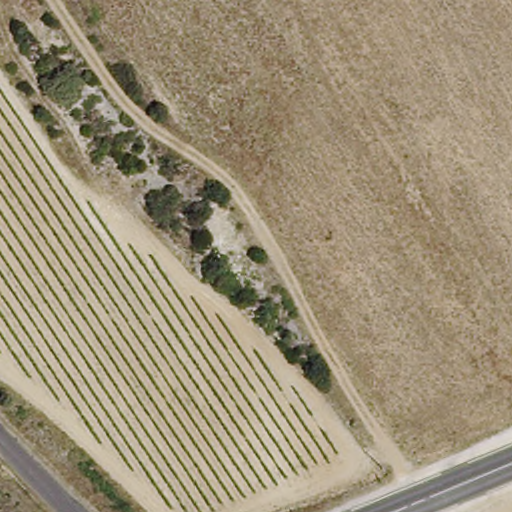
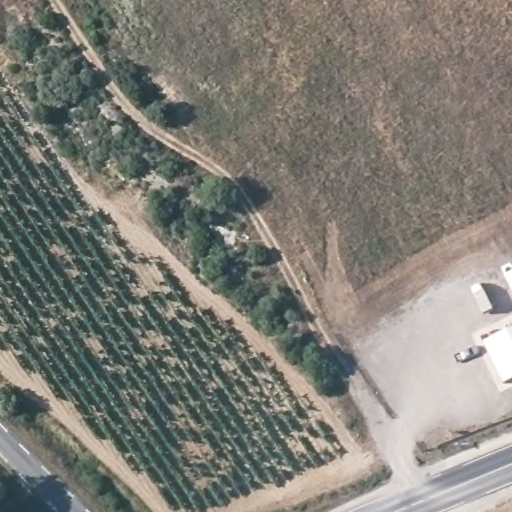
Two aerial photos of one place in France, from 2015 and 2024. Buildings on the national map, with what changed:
new [(505,382),(485,342),(512,328),(512,379),(505,382)]

